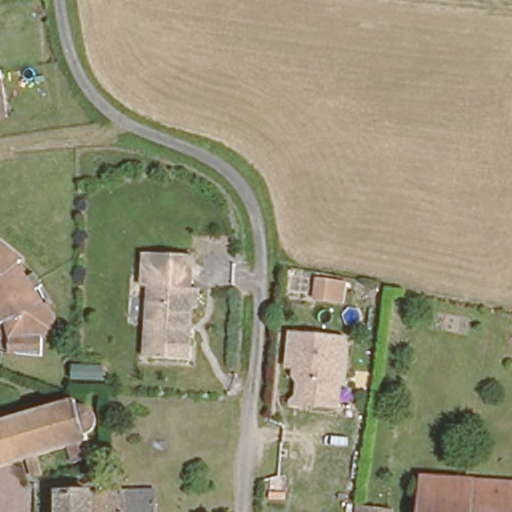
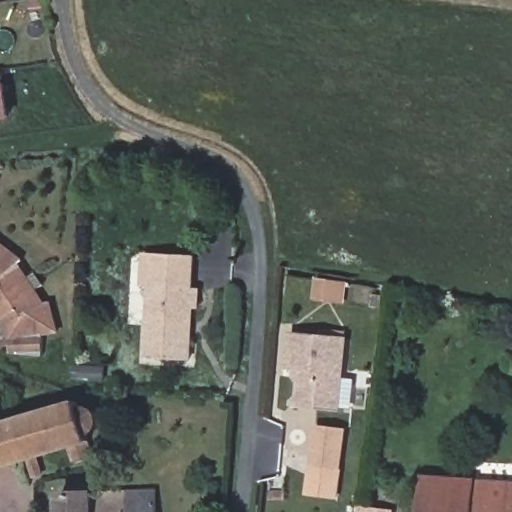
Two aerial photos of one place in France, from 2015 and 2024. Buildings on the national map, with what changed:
unchanged [(8,115),(0,116),(0,72),(5,71),(8,115)]
unchanged [(28,254),(40,270),(54,301),(58,314),(38,319),(40,338),(6,341),(5,322),(0,313),(0,239),(3,236),(28,254)]
unchanged [(192,289),(192,290),(197,290),(196,308),(196,309),(192,309),(191,309),(189,362),(147,358),(149,287),(144,287),(146,254),(194,257),(192,289)]
unchanged [(314,299),(316,277),(349,280),(347,305),(314,299)]
unchanged [(348,342),(339,411),(300,405),(304,370),(292,368),(296,335),(348,342)]
unchanged [(79,402),(89,402),(93,410),(96,419),(98,426),(89,433),(96,453),(74,459),(69,445),(38,452),(43,471),(35,473),(30,456),(0,464),(0,421),(79,397),(79,402)]
new [(338,500),(306,495),(315,426),(348,430),(338,500)]
unchanged [(421,475),(512,480),(512,512),(418,512),(421,475)]
unchanged [(158,487),(158,512),(71,512),(71,491),(158,487)]
unchanged [(391,507),(390,512),(356,512),(357,505),(391,507)]

